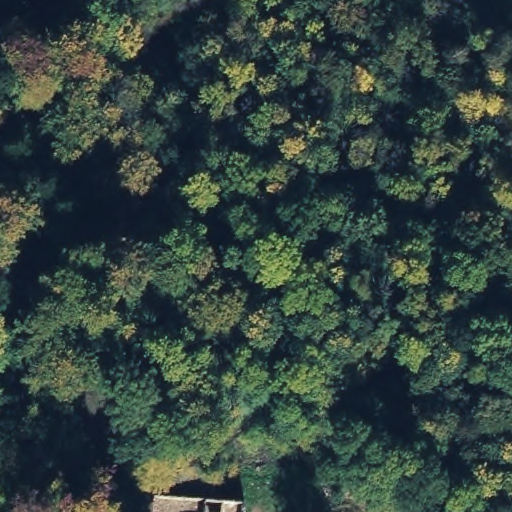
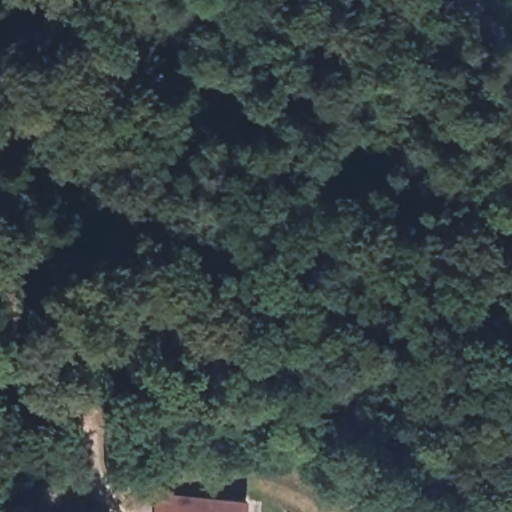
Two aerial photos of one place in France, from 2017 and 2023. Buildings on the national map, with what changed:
unchanged [(238,498),(239,512),(154,512),(154,499),(238,498)]

